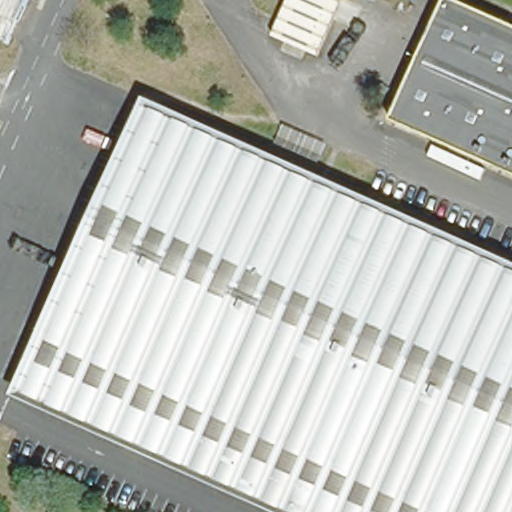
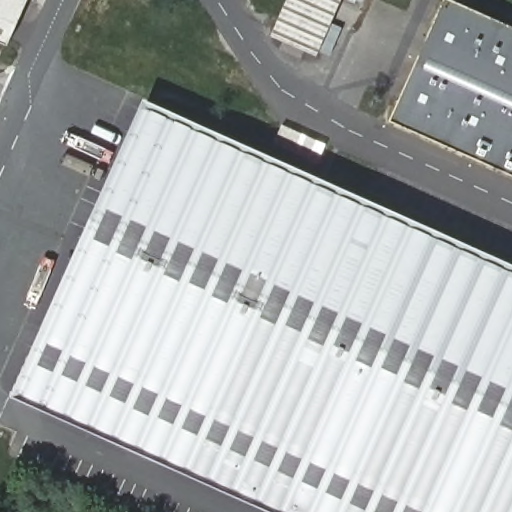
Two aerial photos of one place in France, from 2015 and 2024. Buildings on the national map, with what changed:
unchanged [(0,33),(0,0),(30,0),(12,39),(0,33)]
unchanged [(271,39),(288,0),(342,0),(317,57),(271,39)]
unchanged [(442,0),(470,0),(512,19),(512,171),(391,115),(442,0)]
unchanged [(512,260),(512,512),(283,512),(11,388),(146,95),(512,260)]

